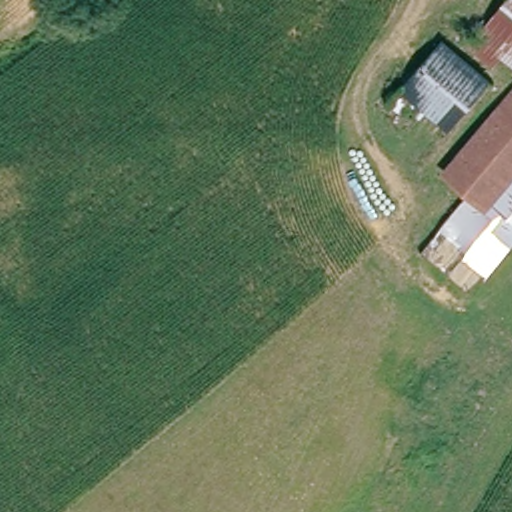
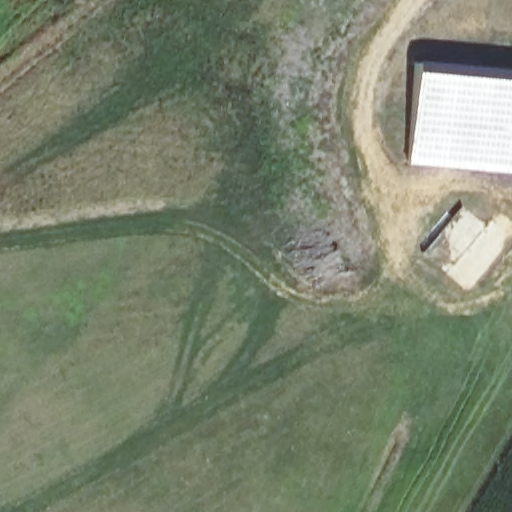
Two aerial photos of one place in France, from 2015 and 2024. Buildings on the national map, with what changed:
demolished [(496,45),(486,56),(465,38),(497,0),(512,0),(512,57),(512,58),(496,45)]
demolished [(475,98),(472,96),(455,115),(457,118),(443,134),(390,89),(438,33),(492,78),(475,98)]
new [(512,69),(512,173),(408,165),(415,61),(512,69)]
demolished [(470,194),(441,170),(512,88),(512,245),(468,296),(418,253),(470,194)]

